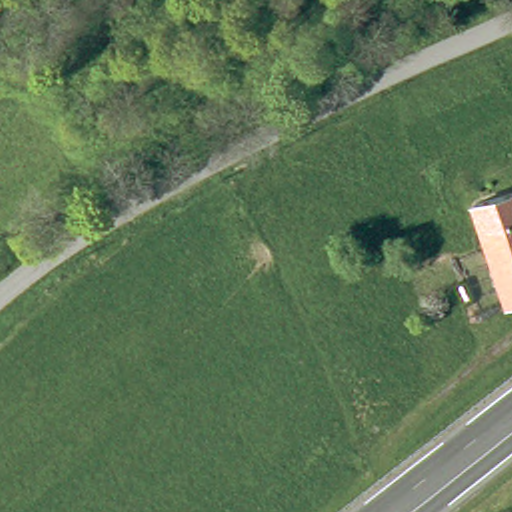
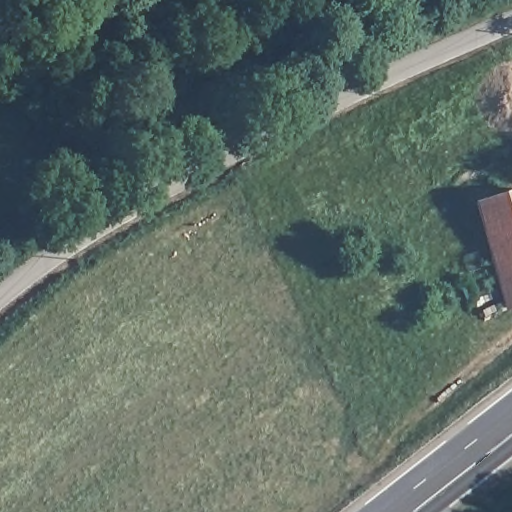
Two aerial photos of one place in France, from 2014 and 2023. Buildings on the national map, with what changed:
unchanged [(470,211),(510,194),(512,197),(512,310),(510,311),(470,211)]

